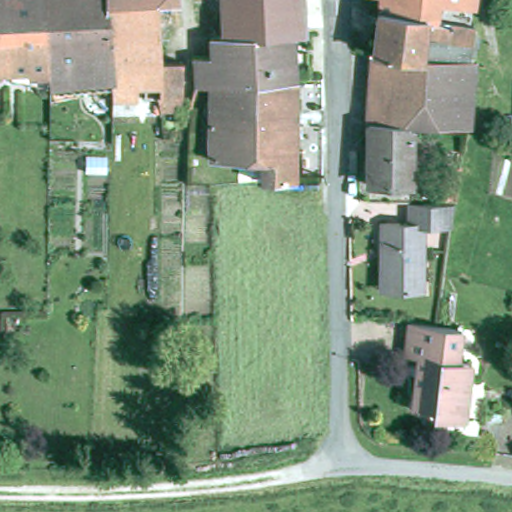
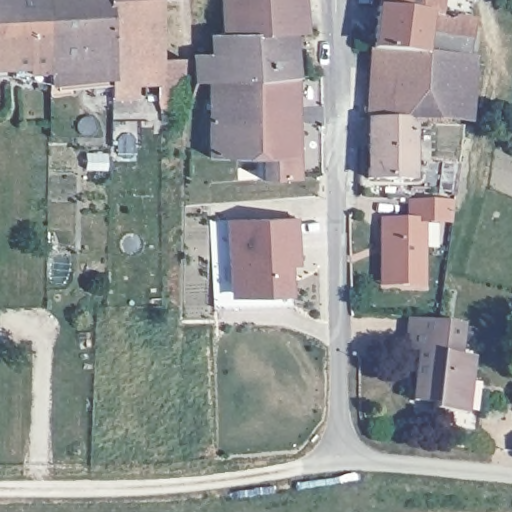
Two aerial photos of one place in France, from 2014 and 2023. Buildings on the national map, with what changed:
unchanged [(14,78),(0,77),(0,0),(49,0),(53,83),(39,81),(14,78)]
unchanged [(116,77),(53,83),(49,0),(112,0),(116,77)]
unchanged [(183,103),(164,104),(164,100),(149,100),(148,96),(118,96),(116,77),(112,0),(173,0),(173,7),(161,7),(162,38),(163,58),(181,57),(183,103)]
unchanged [(224,9),(224,0),(305,0),(305,8),(224,9)]
unchanged [(379,10),(379,0),(477,0),(475,20),(379,10)]
unchanged [(305,8),(305,33),(296,33),(224,35),(224,9),(305,8)]
unchanged [(376,48),(379,10),(475,20),(471,58),(376,48)]
unchanged [(196,82),(196,58),(215,57),(215,41),(224,41),(224,35),(296,33),(299,76),(211,81),(196,82)]
unchanged [(448,95),(447,88),(373,80),(376,48),(471,58),(480,59),(474,96),(448,95)]
unchanged [(264,158),(211,157),(211,81),(299,76),(301,177),(265,180),(264,158)]
unchanged [(447,88),(448,95),(474,96),(472,117),(471,121),(409,120),(371,119),(373,80),(447,88)]
unchanged [(414,128),(410,183),(369,181),(369,150),(369,149),(371,119),(409,120),(409,128),(414,128)]
unchanged [(456,189),(444,187),(449,158),(461,159),(456,189)]
unchanged [(385,241),(384,218),(414,218),(414,197),(453,197),(461,197),(457,222),(429,222),(429,282),(393,282),(386,282),(385,241)]
new [(299,265),(289,265),(291,292),(228,296),(225,219),(296,216),(299,265)]
unchanged [(155,312),(154,320),(141,320),(142,311),(155,312)]
unchanged [(473,430),(437,425),(429,423),(429,398),(409,398),(412,382),(414,358),(416,347),(404,346),(407,313),(413,314),(414,314),(433,317),(442,318),(457,322),(454,353),(466,355),(459,414),(474,416),(473,430)]

